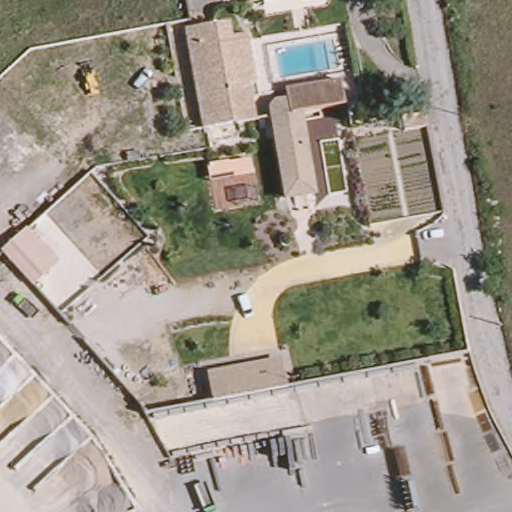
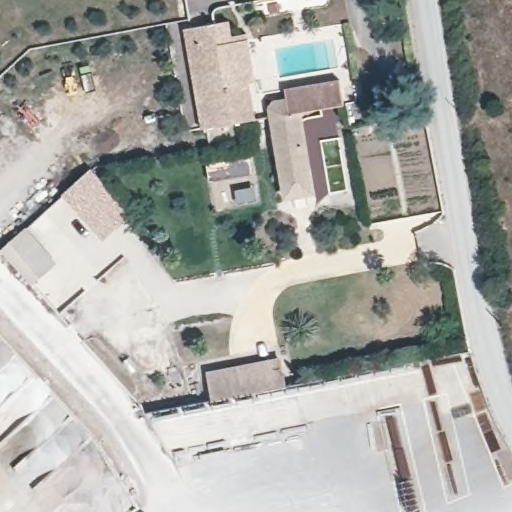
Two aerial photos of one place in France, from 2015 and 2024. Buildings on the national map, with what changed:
unchanged [(312,0),(317,0),(312,1),(312,0)]
unchanged [(236,121),(206,126),(190,26),(221,20),(235,17),(236,31),(253,29),(257,55),(261,82),(254,83),(259,117),(236,121)]
unchanged [(341,77),(345,102),(297,110),(291,111),(290,98),(289,86),(341,77)]
unchanged [(291,111),(297,110),(312,194),(282,200),(264,103),(290,98),(291,111)]
unchanged [(424,127),(404,130),(402,119),(422,116),(424,127)]
new [(133,216),(104,242),(62,195),(91,169),(133,216)]
unchanged [(0,251),(23,229),(55,263),(31,285),(0,254),(0,251)]
unchanged [(278,359),(283,389),(210,404),(205,373),(278,359)]

